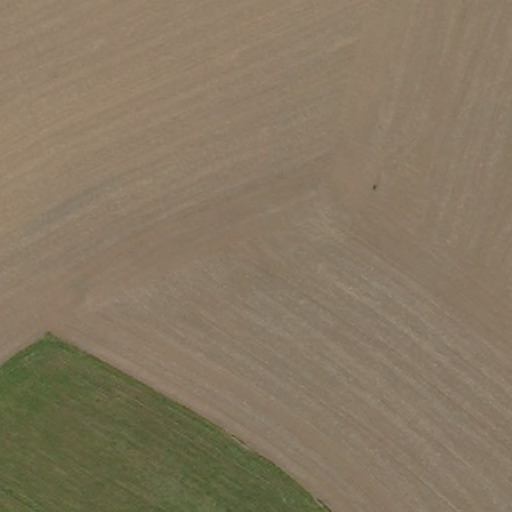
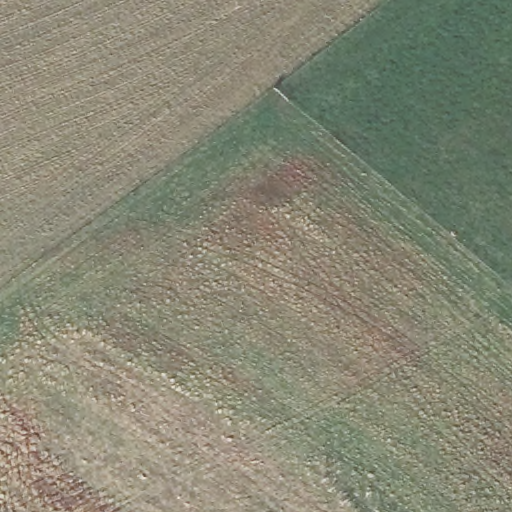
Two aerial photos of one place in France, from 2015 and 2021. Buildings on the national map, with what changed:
[]

